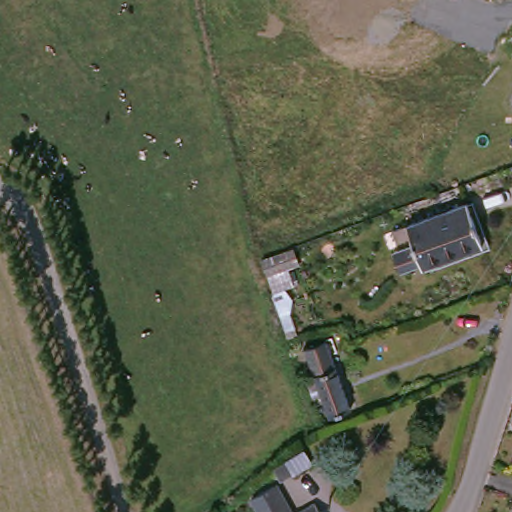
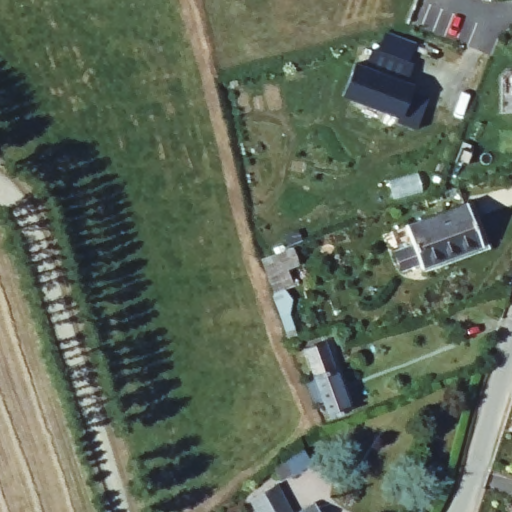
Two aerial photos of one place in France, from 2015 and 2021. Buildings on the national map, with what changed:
new [(354,67),(364,70),(371,51),(411,65),(404,84),(411,87),(406,101),(425,108),(417,131),(397,124),(399,118),(341,98),(354,67)]
unchanged [(400,232),(460,210),(475,252),(414,275),(400,232)]
unchanged [(260,263),(291,252),(296,268),(266,280),(260,263)]
unchanged [(347,418),(332,423),(333,428),(328,430),(320,408),(313,411),(305,385),(311,382),(303,355),(323,347),(347,418)]
unchanged [(269,494),(279,512),(248,512),(244,506),(269,494)]
unchanged [(308,512),(306,512),(308,511),(308,512)]

